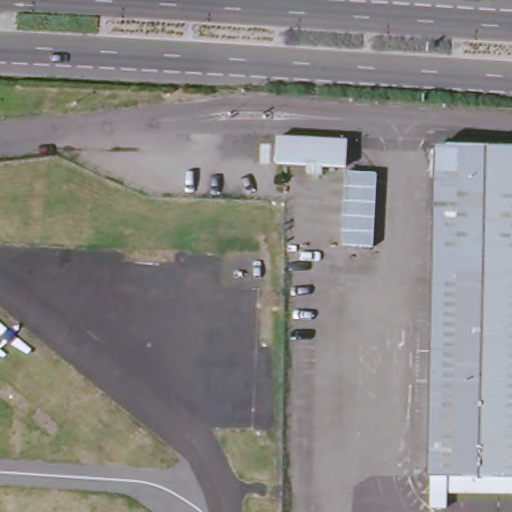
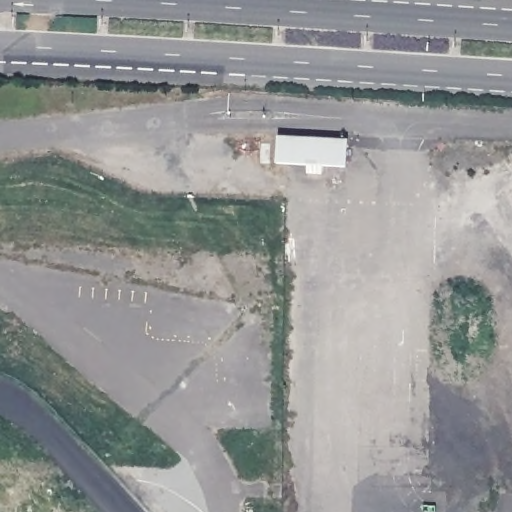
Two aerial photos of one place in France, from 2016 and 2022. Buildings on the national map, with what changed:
unchanged [(345,166),(323,165),(322,175),(307,175),(307,165),(276,165),(277,139),(347,140),(345,166)]
demolished [(512,497),(446,495),(446,480),(429,480),(437,150),(512,151),(512,497)]
unchanged [(382,182),(380,256),(349,255),(350,181),(382,182)]

